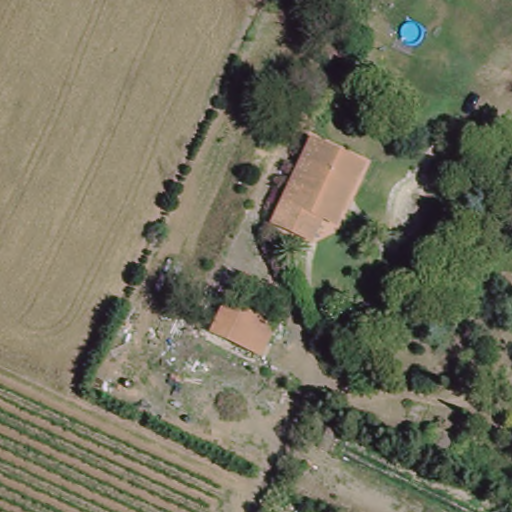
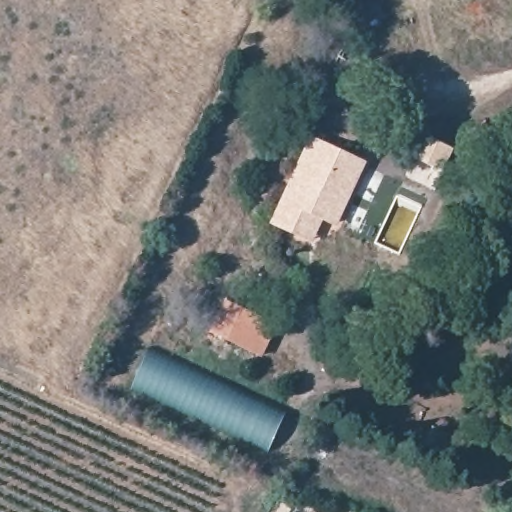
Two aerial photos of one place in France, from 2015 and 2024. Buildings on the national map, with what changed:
new [(406,176),(425,134),(454,148),(434,190),(406,176)]
unchanged [(274,219),(313,136),(364,160),(337,221),(325,216),(314,237),(306,234),(274,219)]
unchanged [(262,357),(213,332),(227,302),(276,326),(262,357)]
new [(287,410),(268,449),(132,388),(152,346),(287,410)]
demolished [(455,458),(426,445),(434,427),(462,441),(455,458)]

